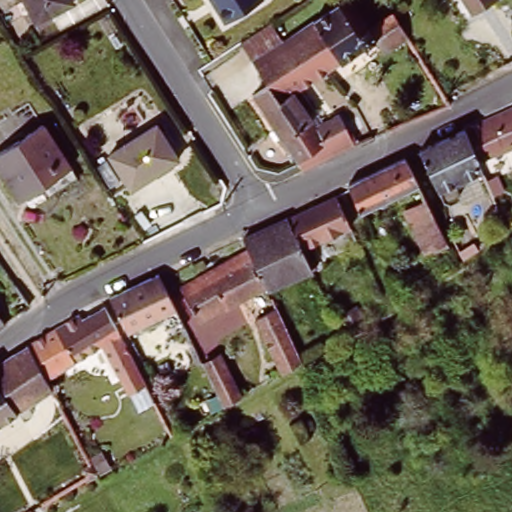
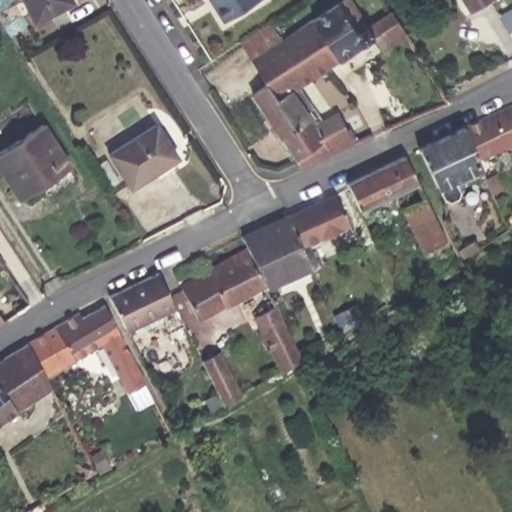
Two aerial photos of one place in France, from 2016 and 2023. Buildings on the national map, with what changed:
unchanged [(21,0),(70,0),(72,5),(33,24),(21,0)]
unchanged [(212,0),(262,0),(227,24),(212,0)]
unchanged [(343,0),(344,0),(364,30),(387,16),(399,35),(372,51),(370,44),(326,72),(303,86),(263,26),(271,21),(283,40),(343,0)]
unchanged [(457,0),(492,0),(468,16),(457,0)]
unchanged [(299,89),(307,101),(300,106),(313,126),(335,115),(352,144),(298,170),(253,97),(267,88),(237,44),(263,26),(303,86),(299,89)]
unchanged [(471,161),(457,130),(512,102),(512,143),(471,161)]
unchanged [(68,169),(75,180),(37,204),(34,199),(22,207),(18,201),(0,171),(0,142),(17,131),(20,137),(40,125),(68,169)]
unchanged [(125,190),(103,156),(152,125),(173,159),(125,190)]
unchanged [(450,192),(440,197),(433,194),(415,150),(457,130),(471,161),(476,172),(450,185),(450,192)]
unchanged [(355,215),(342,190),(399,160),(412,185),(355,215)]
unchanged [(490,175),(498,192),(487,197),(480,181),(490,175)]
unchanged [(348,231),(316,246),(323,261),(309,268),(287,222),(331,198),(348,231)]
unchanged [(424,257),(422,252),(417,254),(397,212),(420,200),(444,246),(452,262),(442,269),(432,252),(424,257)]
unchanged [(275,246),(267,230),(287,222),(309,268),(267,289),(250,252),(275,246)]
unchanged [(455,248),(468,241),(473,248),(460,256),(455,248)]
unchanged [(0,248),(3,252),(0,254),(0,248)]
unchanged [(227,310),(209,275),(250,252),(267,289),(227,310)]
unchanged [(200,324),(182,291),(209,275),(227,310),(200,324)]
unchanged [(170,334),(160,316),(126,334),(108,300),(155,278),(181,328),(170,334)]
unchanged [(277,378),(250,327),(260,321),(255,311),(267,303),(268,305),(274,301),(286,324),(280,328),(298,365),(277,378)]
unchanged [(97,304),(140,383),(124,392),(96,348),(37,383),(21,351),(97,304)]
unchanged [(0,329),(0,323),(3,327),(0,329)]
unchanged [(37,383),(43,394),(0,422),(0,364),(21,351),(37,383)]
unchanged [(212,357),(228,387),(239,381),(243,389),(217,405),(195,365),(212,357)]
unchanged [(279,475),(260,484),(254,468),(273,458),(279,475)]

